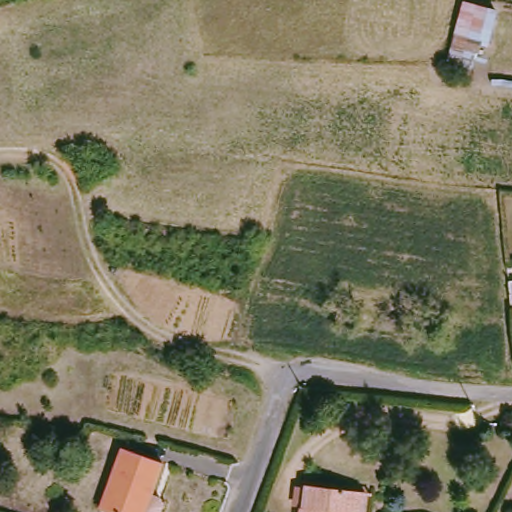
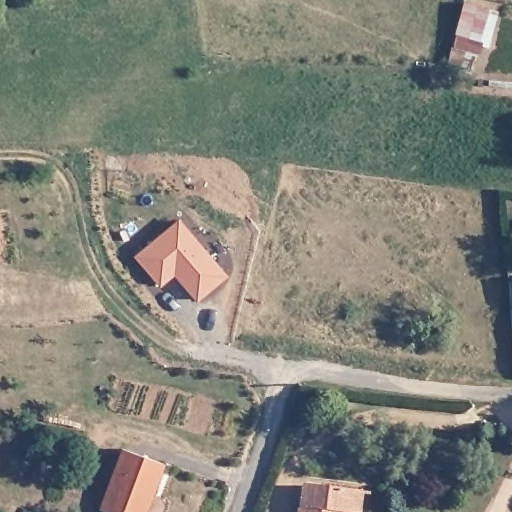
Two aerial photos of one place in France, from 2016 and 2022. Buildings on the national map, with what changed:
unchanged [(487,46),(479,43),(472,69),(448,63),(465,1),(497,11),(487,46)]
new [(139,255),(178,222),(225,277),(197,301),(175,274),(160,286),(136,257),(139,255)]
unchanged [(150,491),(160,494),(162,501),(158,512),(119,512),(100,505),(122,445),(162,460),(150,491)]
unchanged [(365,493),(362,512),(301,512),(305,486),(365,493)]

